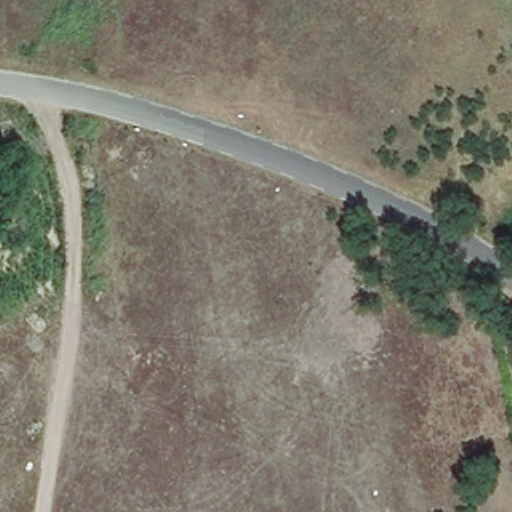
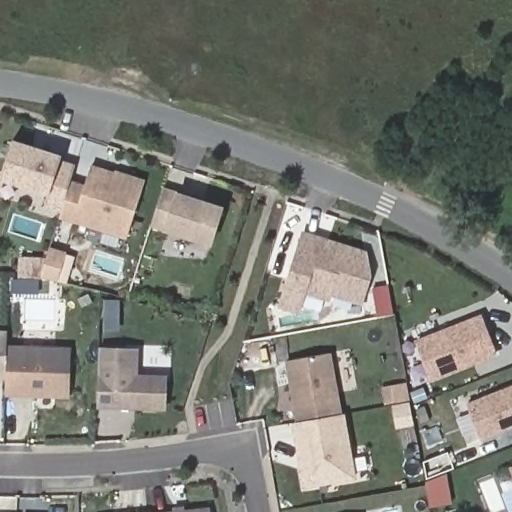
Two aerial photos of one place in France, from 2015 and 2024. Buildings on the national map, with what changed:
new [(61,211),(44,206),(49,195),(1,180),(14,139),(62,154),(60,159),(74,163),(69,180),(85,185),(91,165),(115,171),(116,170),(145,179),(126,238),(59,217),(61,211)]
new [(162,186),(177,191),(224,206),(212,245),(164,230),(150,225),(162,186)]
new [(302,231),(367,250),(372,276),(362,305),(332,296),(330,301),(305,294),(298,312),(278,307),(302,231)]
new [(45,262),(50,247),(59,251),(68,254),(59,283),(40,278),(20,277),(21,262),(45,262)]
new [(413,338),(480,312),(499,356),(431,382),(413,338)]
new [(5,382),(0,381),(0,336),(8,337),(7,352),(5,382)]
new [(167,407),(97,406),(98,350),(138,351),(137,377),(167,377),(167,407)]
new [(68,406),(3,401),(5,382),(7,352),(71,357),(68,406)]
new [(341,413),(299,421),(288,360),(330,352),(341,413)]
new [(397,429),(393,407),(387,407),(384,388),(408,384),(412,403),(416,426),(397,429)]
new [(512,385),(512,426),(480,438),(466,403),(512,385)]
new [(355,477),(306,486),(294,422),(343,413),(355,477)]
new [(512,468),(512,469),(511,468),(512,468)]
new [(209,512),(176,512),(209,508),(209,512)]

